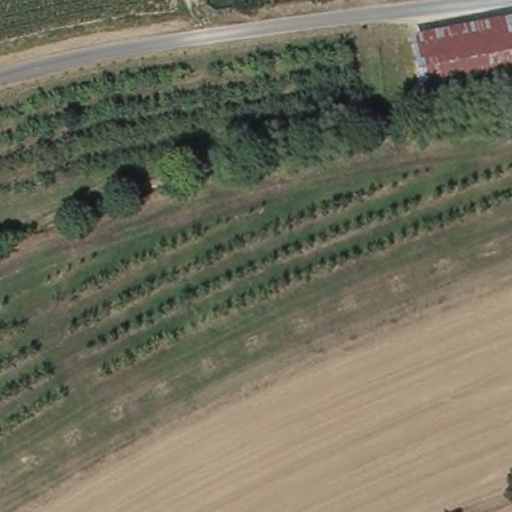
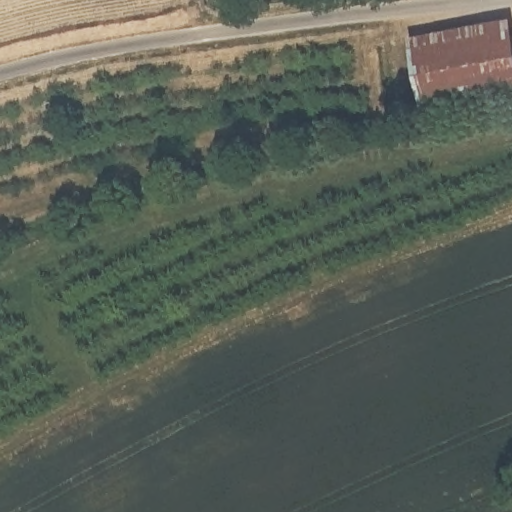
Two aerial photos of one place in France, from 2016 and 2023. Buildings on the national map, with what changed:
unchanged [(512,29),(512,101),(426,115),(424,101),(414,44),(512,29)]

